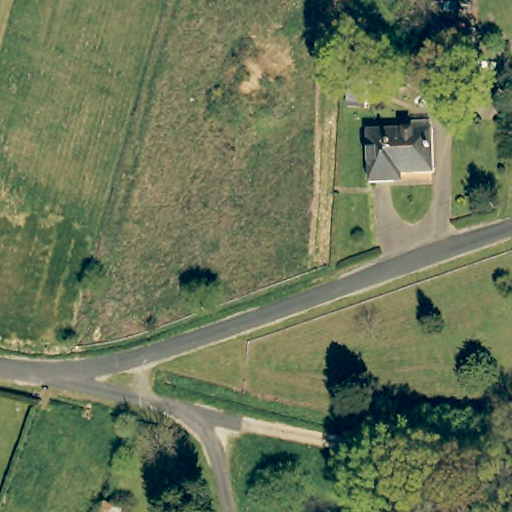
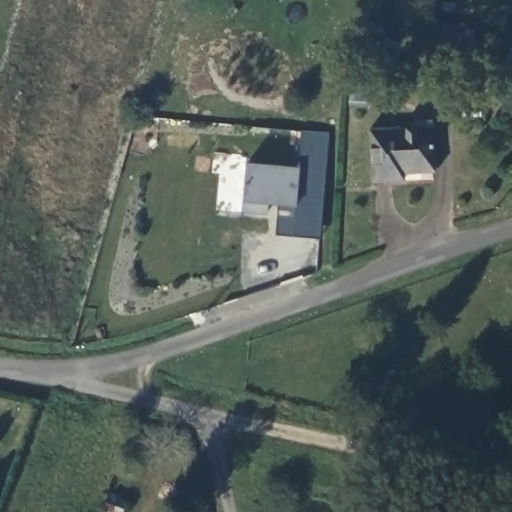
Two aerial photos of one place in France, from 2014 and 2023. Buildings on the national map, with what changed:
unchanged [(475,35),(469,61),(425,51),(431,24),(475,35)]
unchanged [(401,173),(402,181),(371,184),(368,132),(432,129),(434,171),(401,173)]
new [(317,239),(274,236),(275,206),(266,205),(265,215),(240,212),(241,201),(244,164),(298,169),(300,130),(327,132),(317,239)]

